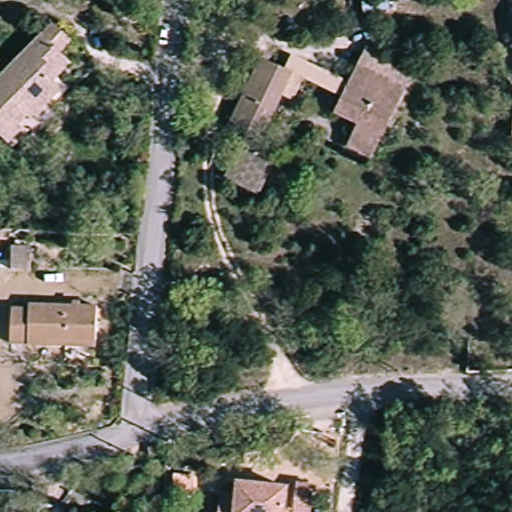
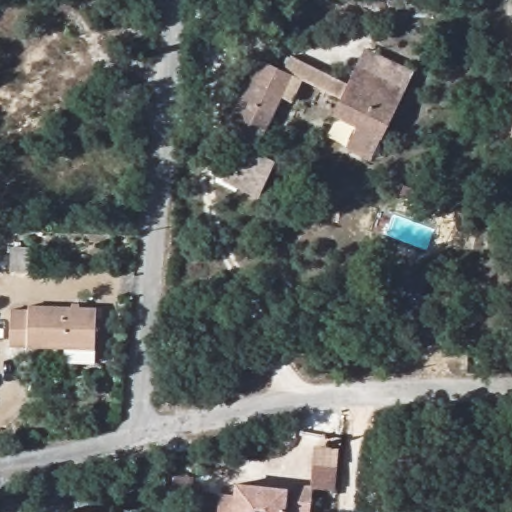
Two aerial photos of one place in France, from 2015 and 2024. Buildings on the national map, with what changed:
demolished [(67,69),(48,84),(56,93),(14,133),(5,123),(0,127),(0,72),(42,31),(50,24),(58,30),(70,45),(56,56),(67,69)]
unchanged [(276,161),(260,197),(225,182),(245,138),(226,130),(257,60),(283,71),(289,58),(347,83),(340,98),(301,81),(291,103),(279,97),(255,151),(276,161)]
unchanged [(343,149),(353,126),(332,116),(340,98),(347,83),(354,68),(379,79),(386,62),(408,71),(401,87),(379,136),(369,160),(343,149)]
unchanged [(15,256),(34,256),(33,282),(14,281),(15,256)]
unchanged [(65,362),(65,349),(13,348),(14,315),(33,315),(33,308),(99,310),(98,350),(98,363),(65,362)]
unchanged [(292,483),(309,484),(307,512),(290,512),(292,483)]
unchanged [(216,495),(232,496),(233,484),(283,487),(281,512),(215,512),(216,495)]

